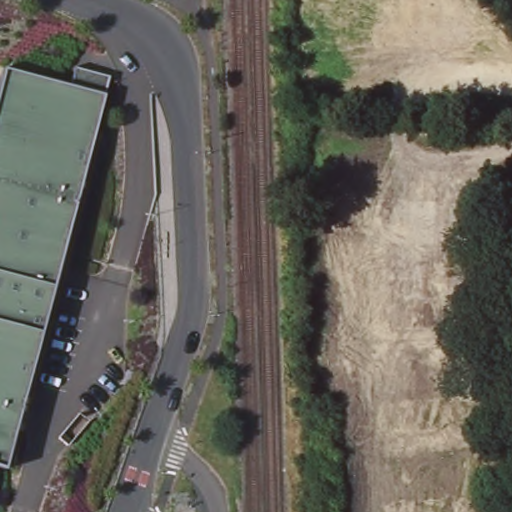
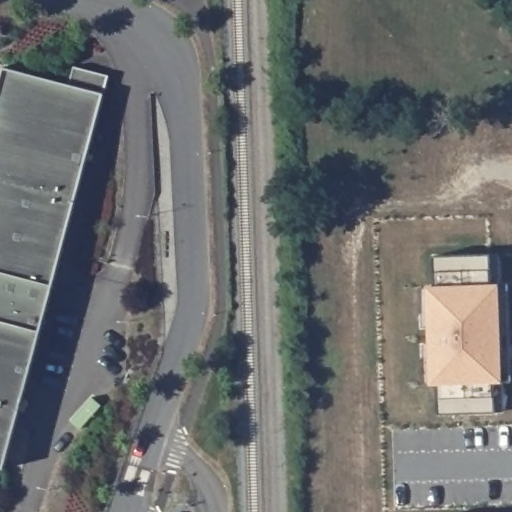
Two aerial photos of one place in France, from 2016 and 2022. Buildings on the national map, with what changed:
unchanged [(76,68),(107,76),(101,95),(5,466),(0,465),(0,80),(4,67),(71,86),(76,68)]
new [(435,287),(433,256),(490,254),(491,284),(501,284),(505,382),(495,383),(496,411),(440,414),(440,385),(432,385),(427,287),(435,287)]

